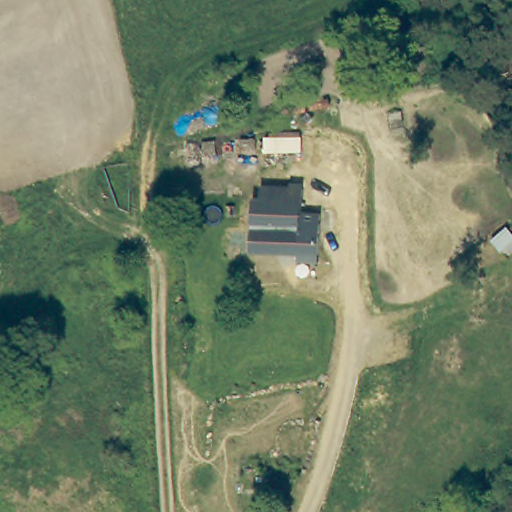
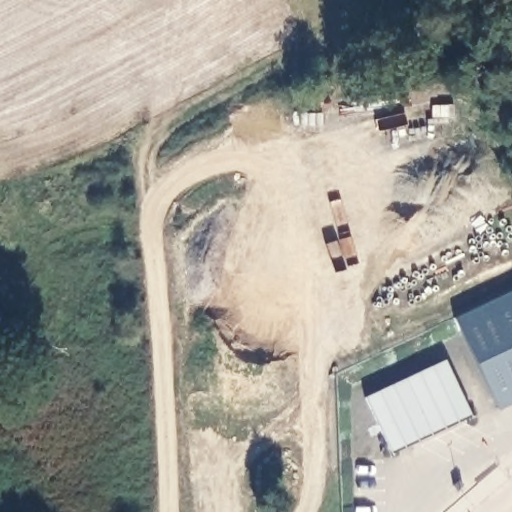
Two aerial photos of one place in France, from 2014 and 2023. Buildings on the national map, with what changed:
unchanged [(257,208),(265,208),(266,196),(306,197),(305,223),(325,224),(323,273),(302,272),(302,264),(255,262),(257,208)]
new [(455,319),(512,291),(512,404),(500,411),(455,319)]
new [(392,454),(365,398),(447,361),(472,417),(392,454)]

